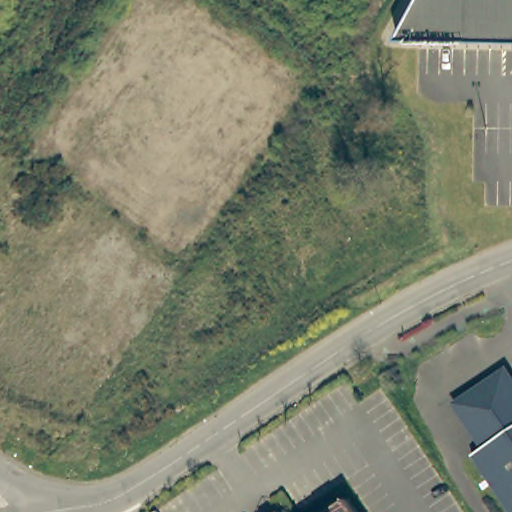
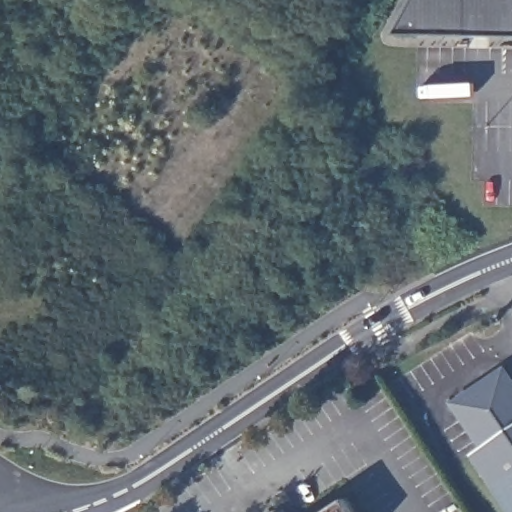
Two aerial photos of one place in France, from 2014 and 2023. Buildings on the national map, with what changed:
unchanged [(512,37),(392,36),(412,0),(512,0),(512,37)]
unchanged [(512,387),(512,512),(507,512),(468,453),(483,443),(456,401),(502,372),(512,387)]
unchanged [(351,504),(357,512),(338,512),(349,505),(351,504)]

